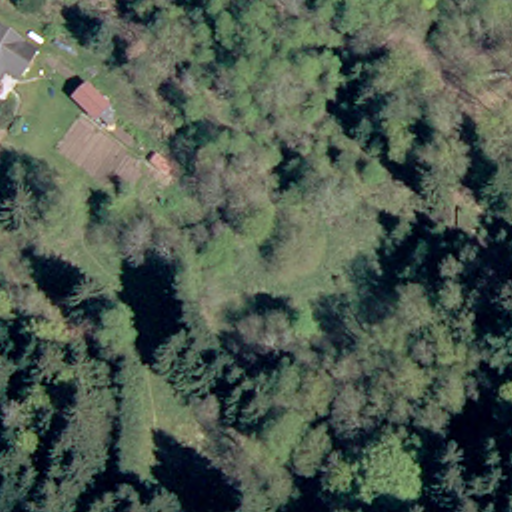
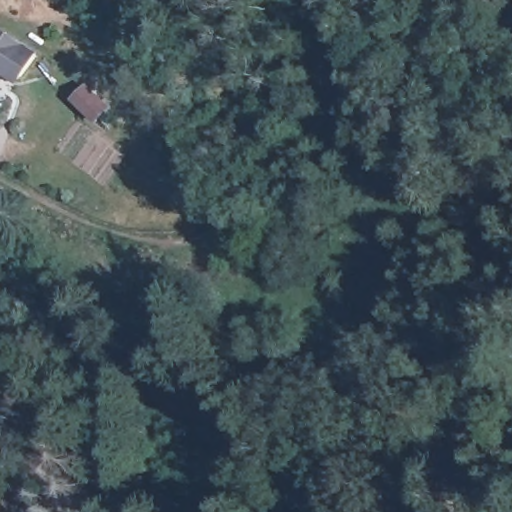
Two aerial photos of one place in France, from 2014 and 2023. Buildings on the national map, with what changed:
unchanged [(5,76),(0,84),(0,34),(35,56),(18,84),(5,76)]
unchanged [(74,100),(85,89),(110,110),(98,122),(74,100)]

